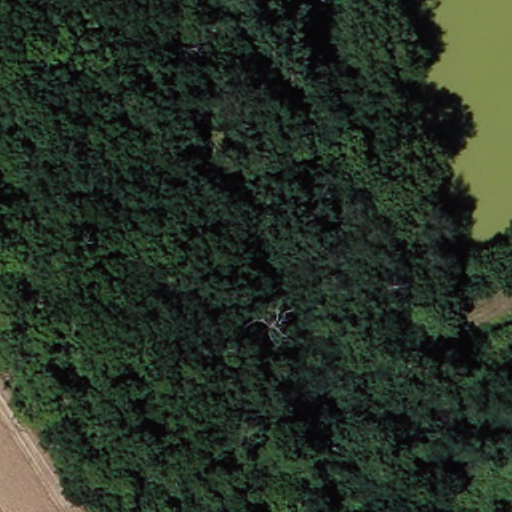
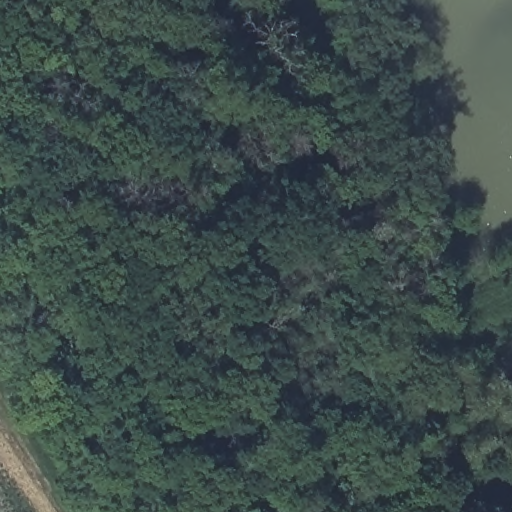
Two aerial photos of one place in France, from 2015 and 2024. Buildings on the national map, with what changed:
[]

